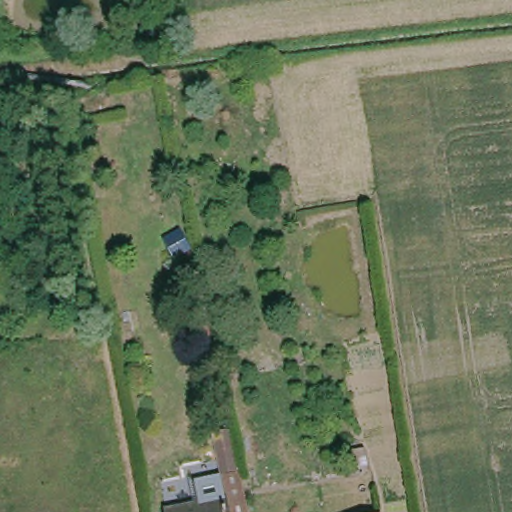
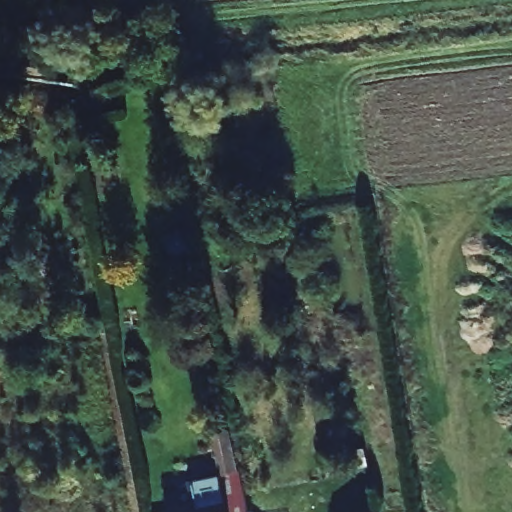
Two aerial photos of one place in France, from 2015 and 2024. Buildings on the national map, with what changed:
unchanged [(253,512),(172,512),(229,500),(224,475),(219,452),(226,450),(223,432),(236,430),(238,440),(244,470),(249,493),(253,512)]

